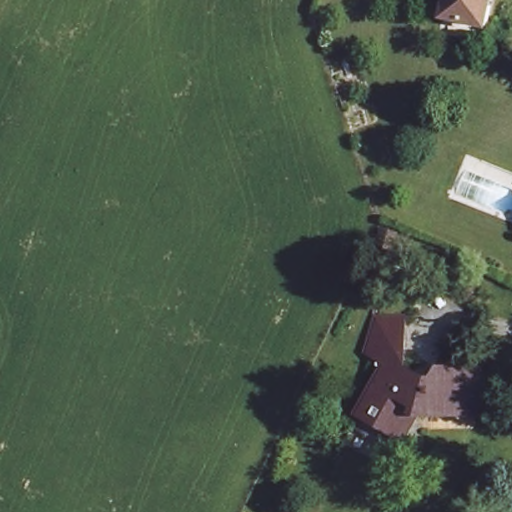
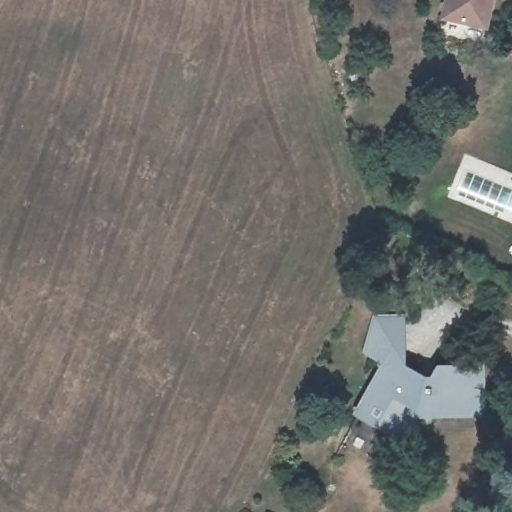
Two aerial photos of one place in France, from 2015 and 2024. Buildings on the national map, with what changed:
unchanged [(443,14),(446,0),(491,0),(486,24),(443,14)]
unchanged [(381,245),(386,232),(400,237),(395,250),(381,245)]
unchanged [(372,407),(391,371),(371,360),(382,327),(405,327),(406,378),(430,390),(438,388),(444,378),(484,378),(485,421),(435,422),(433,414),(422,415),(407,445),(384,432),(364,421),(372,407)]

